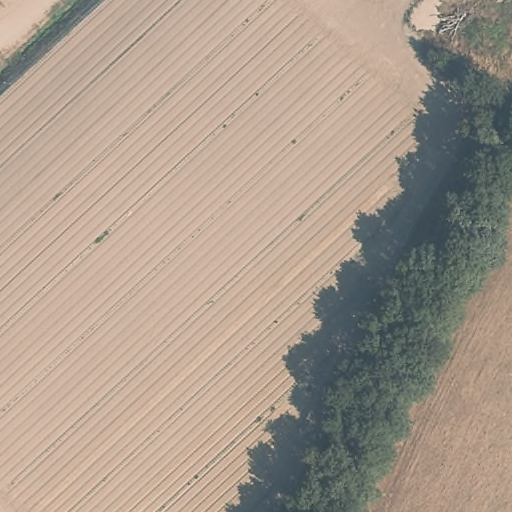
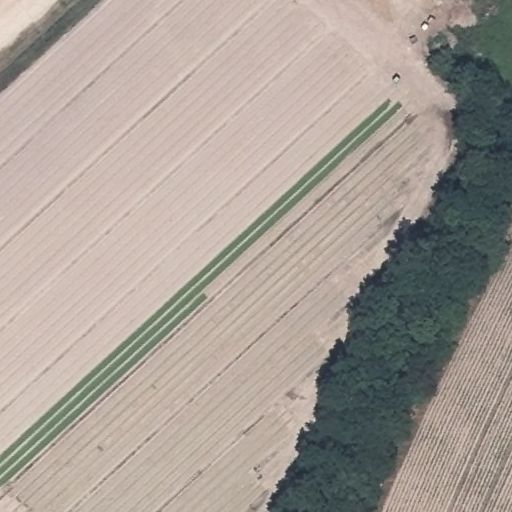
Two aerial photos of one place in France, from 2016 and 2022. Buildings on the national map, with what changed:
[]

